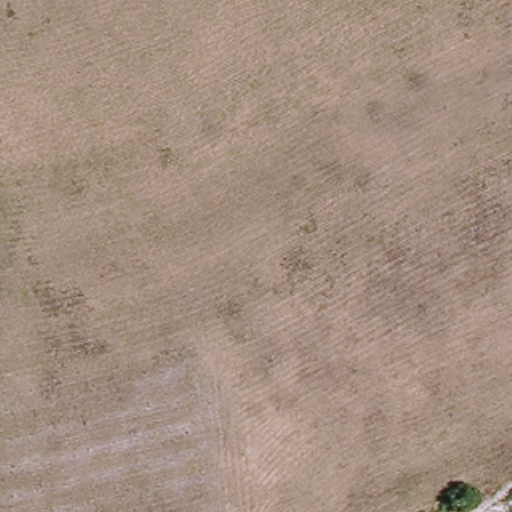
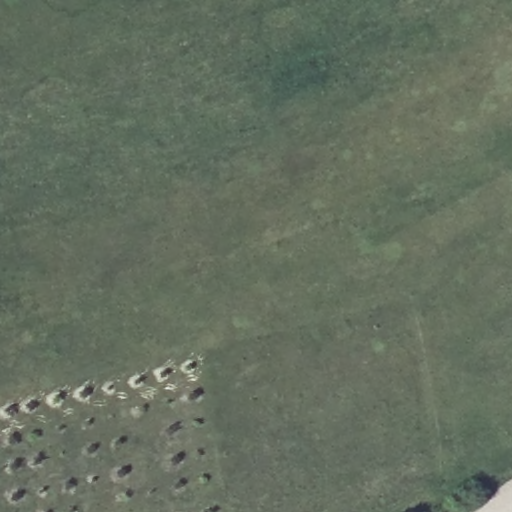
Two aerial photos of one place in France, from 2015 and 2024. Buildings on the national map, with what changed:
[]

